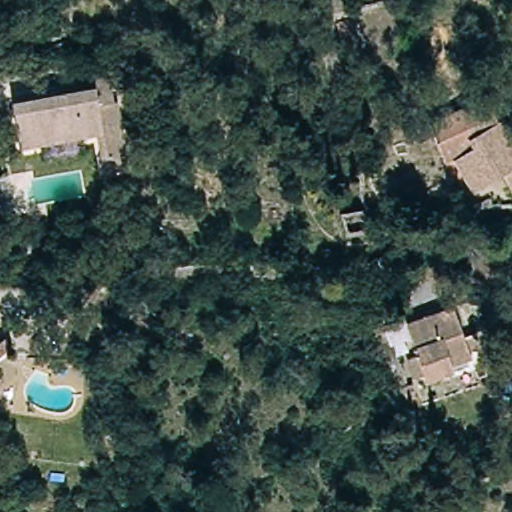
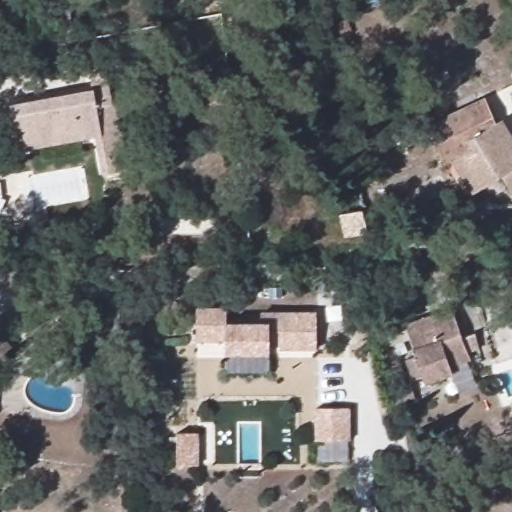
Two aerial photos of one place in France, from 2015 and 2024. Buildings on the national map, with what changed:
unchanged [(80,93),(80,92),(90,90),(89,75),(106,72),(111,103),(116,103),(124,154),(118,155),(120,173),(101,177),(94,139),(77,142),(78,127),(79,97),(80,93)]
unchanged [(18,152),(9,105),(80,92),(79,97),(78,127),(77,142),(18,152)]
unchanged [(493,122),(503,117),(512,135),(512,197),(510,197),(500,178),(466,194),(449,158),(444,161),(425,127),(482,100),(493,122)]
new [(197,307),(227,307),(226,322),(261,322),(261,311),(317,313),(316,350),(280,350),(280,346),(270,346),(270,355),(226,355),(225,342),(196,342),(197,307)]
unchanged [(411,350),(412,349),(403,324),(450,308),(470,362),(448,369),(450,375),(423,386),(411,350)]
unchanged [(10,349),(0,357),(0,341),(2,340),(10,349)]
new [(352,409),(351,441),(316,440),(315,408),(352,409)]

